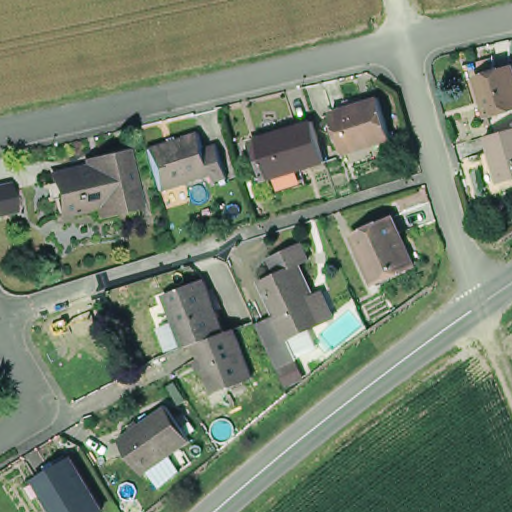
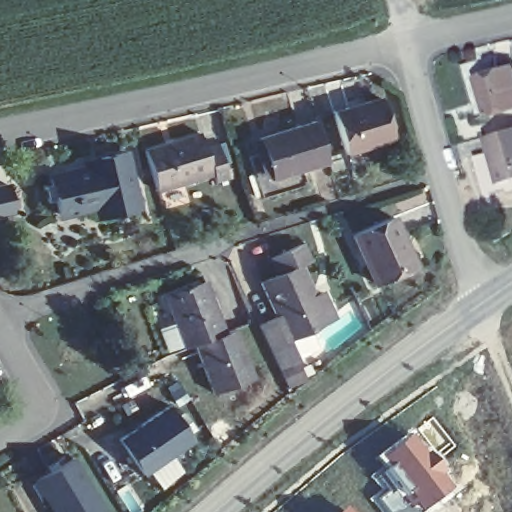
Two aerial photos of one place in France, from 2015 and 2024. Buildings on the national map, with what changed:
unchanged [(512,69),(512,113),(497,117),(483,79),(512,69)]
unchanged [(357,152),(344,112),(391,97),(402,136),(357,152)]
unchanged [(335,161),(278,182),(264,141),(320,121),(335,161)]
unchanged [(495,150),(506,147),(503,135),(512,133),(512,185),(505,186),(495,150)]
unchanged [(203,154),(214,148),(227,181),(215,186),(212,179),(162,200),(145,160),(198,140),(203,154)]
unchanged [(110,205),(70,215),(62,180),(102,171),(100,161),(112,158),(135,152),(150,208),(126,215),(113,217),(110,205)]
unchanged [(0,218),(0,189),(7,187),(15,214),(0,218)]
unchanged [(379,288),(356,236),(395,219),(420,268),(379,288)]
unchanged [(355,312),(345,316),(336,321),(309,333),(307,335),(293,310),(276,277),(295,268),(287,251),(316,237),(325,254),(316,258),(333,292),(342,285),(355,312)]
unchanged [(168,300),(208,283),(225,334),(200,343),(196,344),(185,348),(168,300)]
unchanged [(307,335),(309,333),(319,353),(299,363),(276,316),(293,310),(307,335)]
unchanged [(220,406),(215,391),(200,343),(225,334),(238,329),(255,379),(245,382),(249,395),(220,406)]
unchanged [(123,439),(174,404),(199,440),(149,476),(123,439)]
new [(370,477),(381,468),(373,458),(407,433),(433,464),(452,491),(428,512),(379,512),(369,500),(380,490),(370,477)]
unchanged [(80,465),(109,512),(62,512),(46,485),(80,465)]
new [(349,512),(338,512),(343,506),(349,512)]

